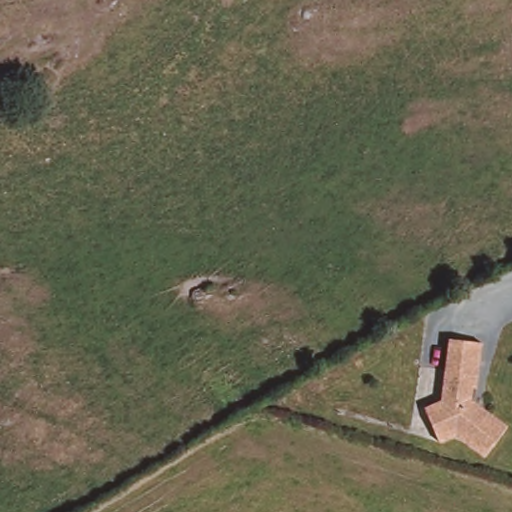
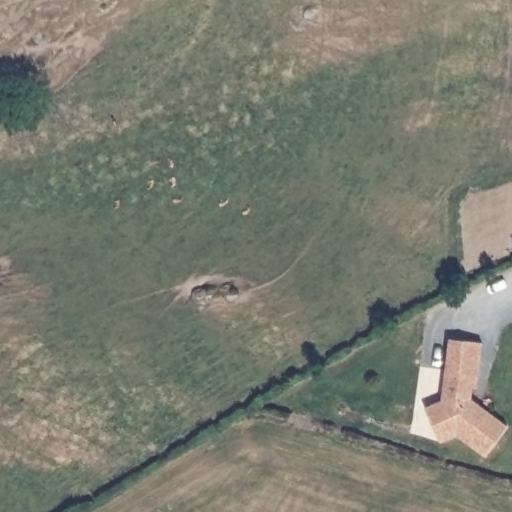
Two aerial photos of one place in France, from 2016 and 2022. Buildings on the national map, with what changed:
unchanged [(445,401),(453,341),(487,344),(482,388),(476,387),(474,400),(510,426),(490,453),(462,432),(445,441),(429,409),(445,401)]

